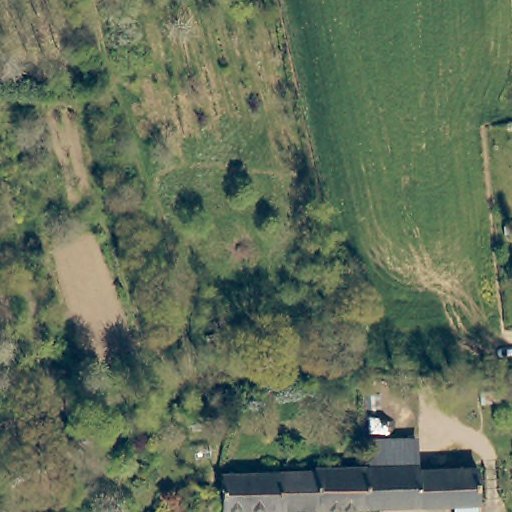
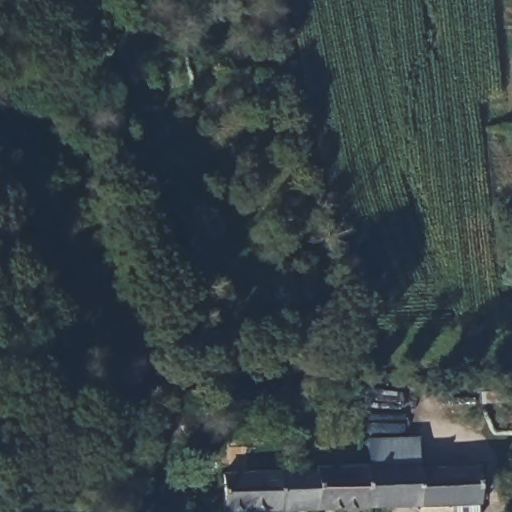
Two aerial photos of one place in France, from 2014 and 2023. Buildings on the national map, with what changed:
unchanged [(363,445),(413,443),(414,467),(402,468),(364,468),(363,445)]
unchanged [(362,510),(360,468),(364,468),(402,468),(414,467),(415,471),(473,469),(472,496),(472,507),(472,512),(448,512),(448,508),(362,510)]
unchanged [(311,475),(311,471),(360,468),(362,510),(312,511),(311,475)]
unchanged [(311,475),(312,511),(289,512),(218,512),(217,478),(311,475)]

